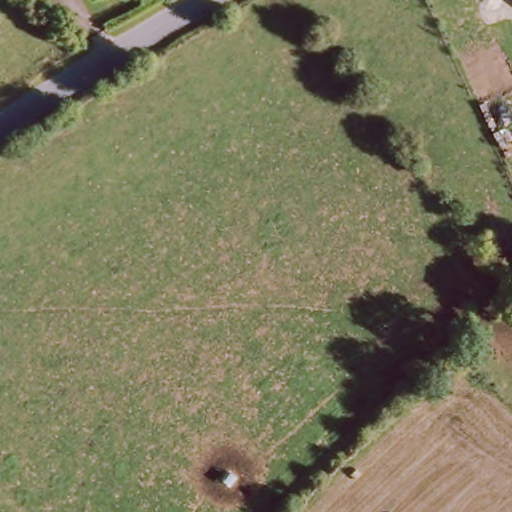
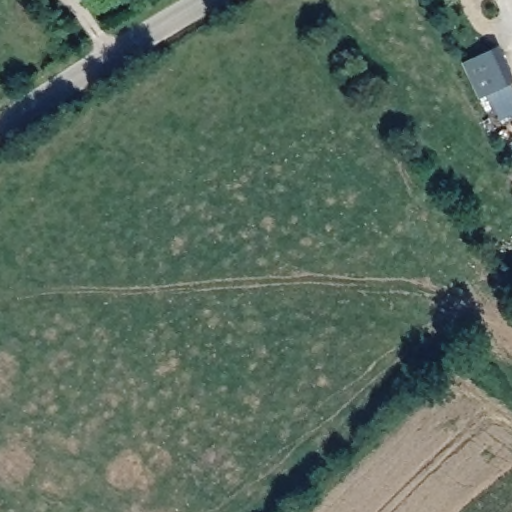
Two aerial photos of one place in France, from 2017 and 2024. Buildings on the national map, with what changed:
new [(512,90),(512,115),(506,118),(486,95),(480,97),(463,62),(492,49),(512,90)]

